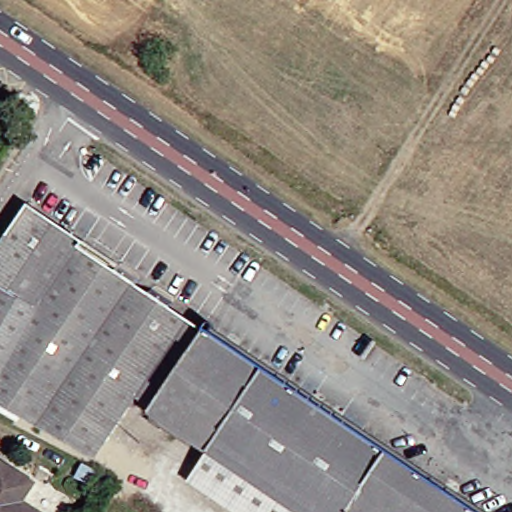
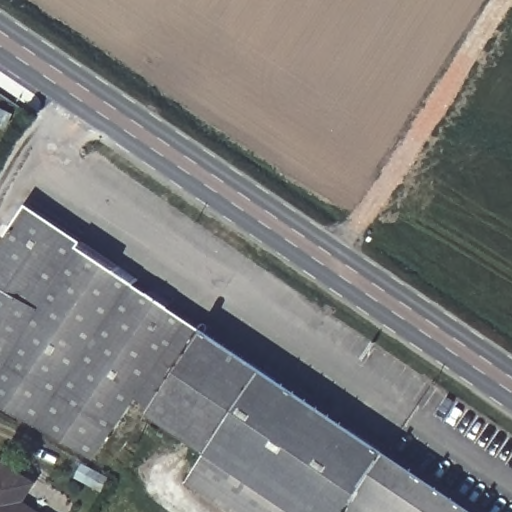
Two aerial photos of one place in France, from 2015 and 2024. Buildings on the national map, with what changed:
unchanged [(140,416),(123,405),(87,460),(0,407),(0,360),(29,312),(0,294),(0,233),(14,209),(200,326),(197,330),(140,416)]
unchanged [(29,312),(0,360),(0,294),(29,312)]
unchanged [(464,512),(279,512),(204,463),(192,456),(144,424),(136,420),(140,416),(197,330),(201,333),(464,512)]
unchanged [(173,485),(192,456),(204,463),(279,512),(215,512),(173,485)]
unchanged [(27,483),(15,502),(31,512),(0,512),(0,466),(27,483)]

